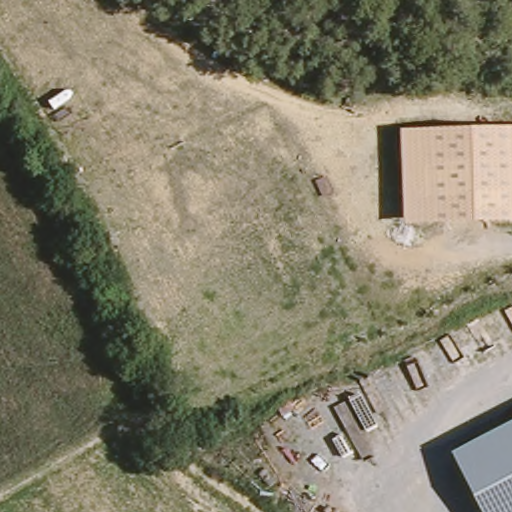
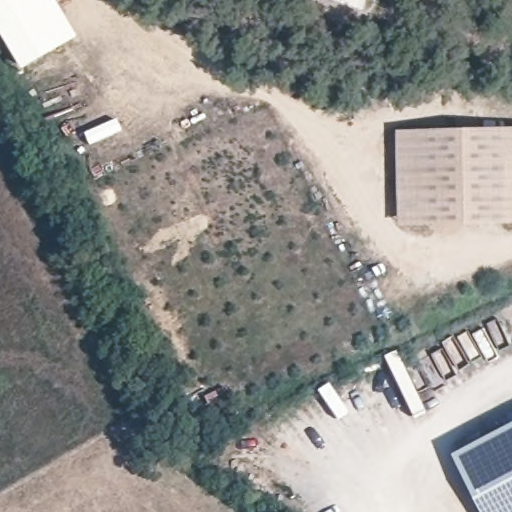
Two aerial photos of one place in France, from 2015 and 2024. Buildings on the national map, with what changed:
new [(76,39),(20,73),(0,40),(0,0),(53,0),(76,39)]
unchanged [(512,127),(512,223),(402,226),(400,129),(512,127)]
unchanged [(512,428),(512,512),(487,512),(459,457),(512,428)]

